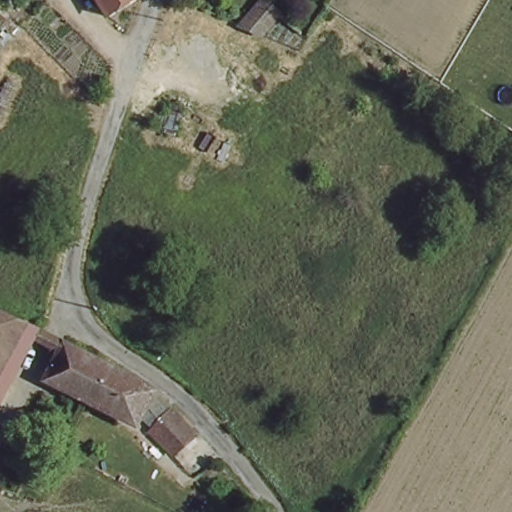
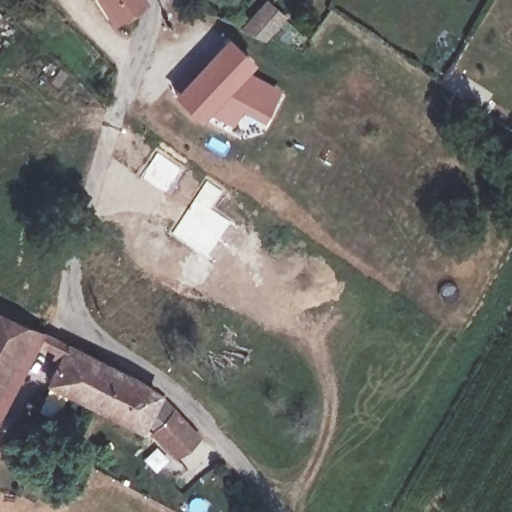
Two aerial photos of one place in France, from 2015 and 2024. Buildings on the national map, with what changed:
unchanged [(101,0),(131,0),(115,15),(101,0)]
unchanged [(264,35),(248,31),(274,0),(275,0),(283,8),(264,35)]
new [(204,115),(198,122),(167,92),(225,35),(255,64),(245,73),(280,90),(262,120),(239,108),(230,126),(204,115)]
unchanged [(36,328),(0,382),(0,308),(36,328)]
unchanged [(155,389),(136,425),(43,378),(65,342),(155,389)]
unchanged [(198,430),(173,451),(152,431),(175,406),(198,430)]

